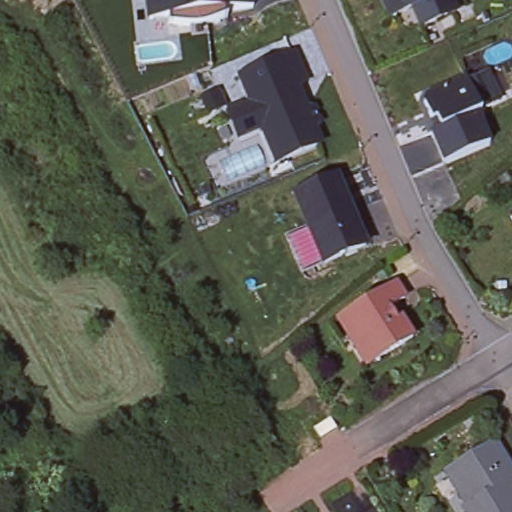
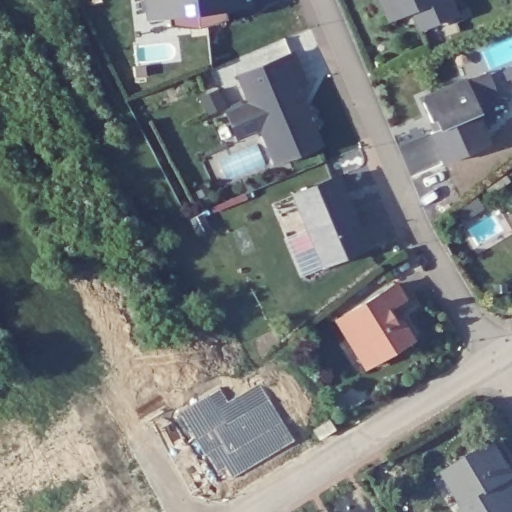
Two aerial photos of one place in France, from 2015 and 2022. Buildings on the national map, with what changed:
unchanged [(227,20),(216,24),(207,27),(191,29),(179,27),(169,26),(169,19),(150,21),(147,0),(253,0),(253,9),(226,12),(227,20)]
unchanged [(417,30),(408,10),(386,20),(377,0),(445,0),(451,15),(417,30)]
unchanged [(224,115),(238,109),(248,106),(236,77),(288,55),(300,85),(291,89),(301,112),(308,109),(316,127),(309,130),(316,147),(273,165),(257,129),(248,133),(234,139),(224,115)]
unchanged [(424,100),(427,93),(468,76),(482,109),(477,111),(490,142),(445,161),(432,129),(436,127),(433,118),(424,100)]
unchanged [(324,261),(296,191),(337,174),(366,244),(324,261)]
unchanged [(512,213),(512,221),(509,215),(512,213)]
unchanged [(359,346),(341,317),(398,281),(408,296),(391,307),(399,321),(404,317),(415,337),(378,360),(371,364),(359,346)]
new [(293,442),(228,480),(224,471),(218,476),(181,416),(221,391),(227,402),(262,386),(293,442)]
unchanged [(332,418),(336,425),(330,430),(325,423),(332,418)]
unchanged [(456,492),(444,471),(457,462),(494,440),(507,462),(512,470),(512,477),(511,477),(512,479),(512,512),(467,512),(456,492)]

